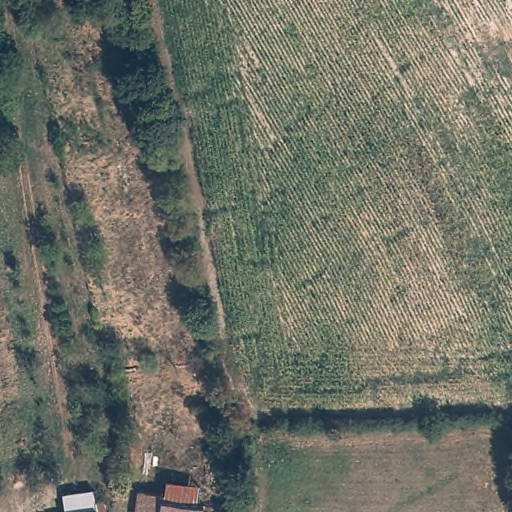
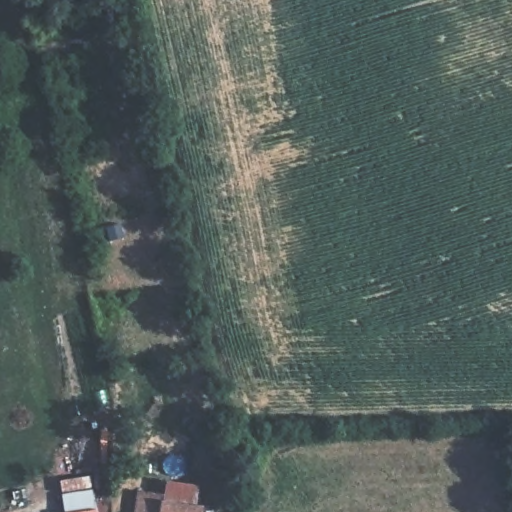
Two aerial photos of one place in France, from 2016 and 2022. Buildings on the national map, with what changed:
unchanged [(210,496),(210,460),(197,460),(197,442),(225,443),(227,497),(210,496)]
unchanged [(142,485),(167,487),(167,496),(210,500),(209,512),(140,512),(142,485)]
unchanged [(72,507),(95,502),(95,512),(72,512),(72,507)]

